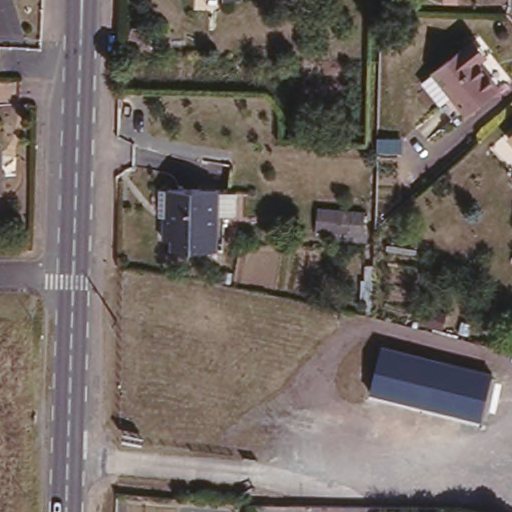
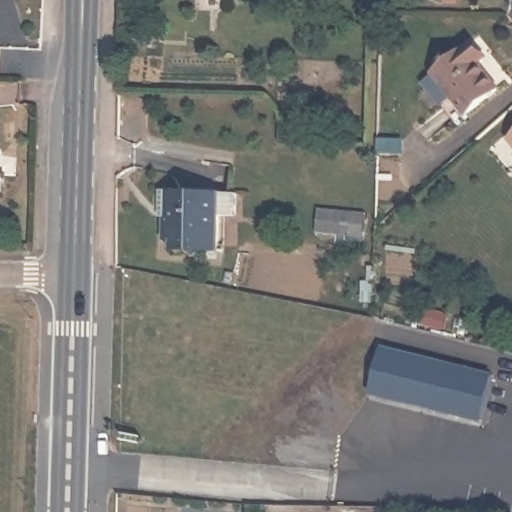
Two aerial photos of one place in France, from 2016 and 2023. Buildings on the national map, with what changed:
unchanged [(462,31),(477,51),(480,57),(476,62),(488,77),(457,103),(424,62),(462,31)]
unchanged [(512,126),(512,142),(504,132),(512,126)]
unchanged [(218,249),(172,247),(173,240),(164,239),(165,214),(173,215),(173,211),(166,211),(167,188),(219,189),(218,249)]
unchanged [(240,286),(212,281),(214,272),(230,275),(232,268),(243,271),(240,286)]
unchanged [(491,372),(480,416),(371,388),(382,344),(491,372)]

